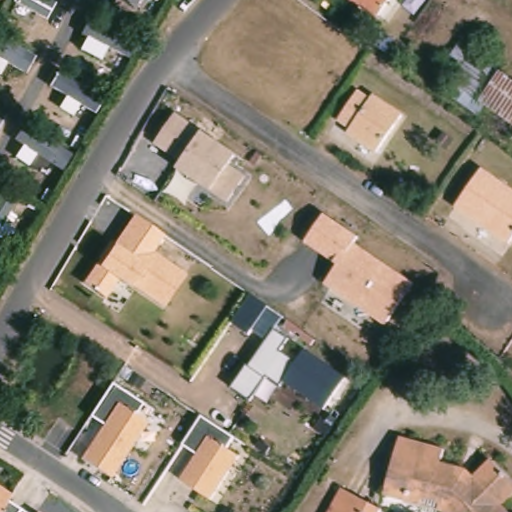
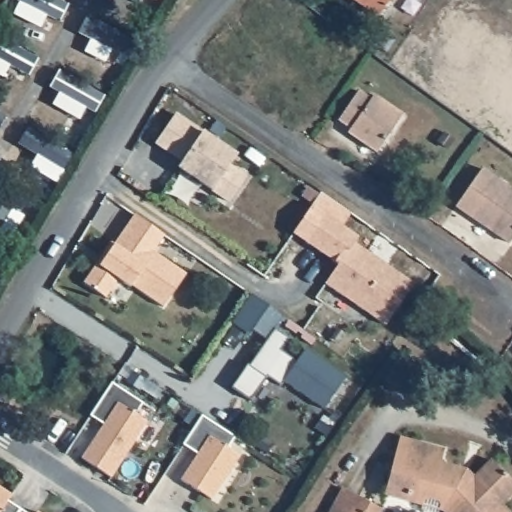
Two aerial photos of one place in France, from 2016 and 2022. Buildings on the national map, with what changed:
unchanged [(372,17),(347,0),(384,0),(372,17)]
unchanged [(512,125),(484,106),(477,116),(443,92),(458,71),(444,61),(458,42),(512,81),(512,125)]
unchanged [(365,104),(367,100),(396,121),(372,157),(341,136),(343,135),(332,126),(353,95),(365,104)]
unchanged [(176,114),(201,132),(236,154),(229,164),(249,177),(228,206),(209,191),(177,168),(182,160),(154,145),(176,114)]
unchanged [(512,241),(508,247),(455,210),(481,173),(512,195),(512,241)]
unchanged [(324,213),(359,237),(353,245),(411,284),(385,327),(324,283),(336,264),(303,243),(324,213)]
unchanged [(162,237),(151,255),(182,274),(161,309),(128,288),(118,281),(104,299),(84,286),(98,269),(112,249),(133,218),(162,237)]
unchanged [(248,293),(267,306),(283,317),(275,329),(288,338),(278,353),(294,361),(304,349),(344,377),(323,409),(282,382),(280,386),(266,377),(249,400),(231,388),(248,366),(265,339),(230,321),(248,293)]
unchanged [(90,415),(111,383),(141,403),(134,414),(145,422),(109,477),(80,458),(101,425),(89,416),(90,415)]
unchanged [(224,449),(236,457),(209,499),(179,479),(196,454),(181,444),(200,415),(232,436),(224,449)]
unchanged [(441,460),(466,466),(474,475),(490,458),(512,479),(512,497),(504,505),(510,512),(448,512),(446,510),(443,510),(443,512),(427,512),(424,510),(426,505),(386,494),(401,437),(442,446),(441,460)]
unchanged [(354,512),(332,512),(343,489),(384,509),(383,512),(361,512),(355,509),(354,512)]
unchanged [(361,512),(354,512),(355,509),(361,512)]

